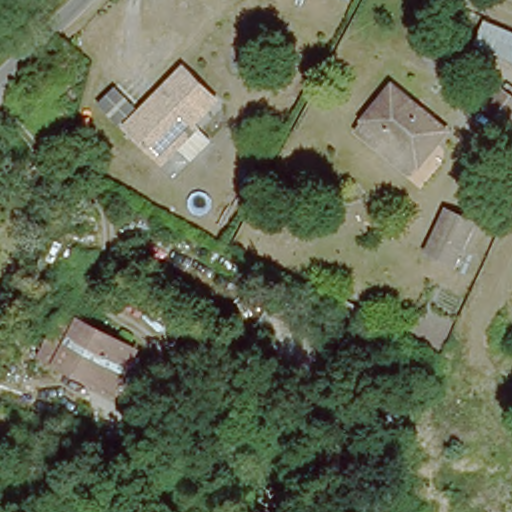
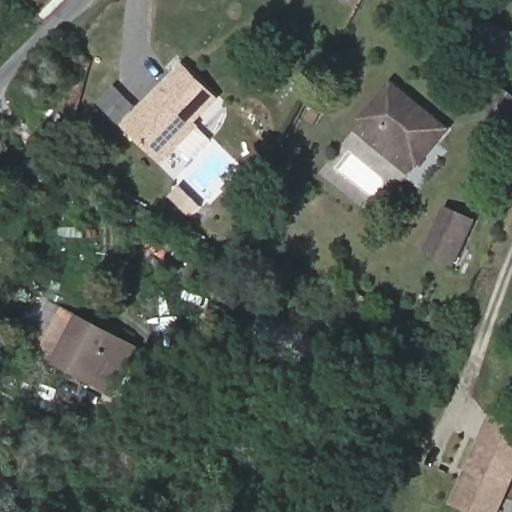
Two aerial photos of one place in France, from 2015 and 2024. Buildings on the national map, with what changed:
unchanged [(512,56),(477,40),(485,19),(512,32),(512,56)]
unchanged [(170,61),(209,85),(191,113),(196,115),(184,134),(140,109),(170,61)]
unchanged [(390,79),(446,121),(420,156),(362,114),(390,79)]
unchanged [(512,112),(505,120),(477,100),(492,84),(512,98),(512,112)]
unchanged [(171,155),(127,129),(140,109),(184,134),(171,155)]
unchanged [(411,167),(353,124),(362,114),(420,156),(411,167)]
unchanged [(22,254),(0,243),(0,223),(9,199),(41,214),(22,254)]
unchanged [(456,256),(437,249),(427,247),(442,203),(452,205),(471,213),(456,256)]
unchanged [(102,388),(40,351),(62,308),(76,315),(57,354),(105,383),(102,388)]
unchanged [(306,333),(293,354),(252,334),(267,309),(306,333)]
unchanged [(125,344),(105,383),(57,354),(76,315),(125,344)]
new [(491,413),(512,422),(512,486),(500,512),(464,512),(448,505),(491,413)]

